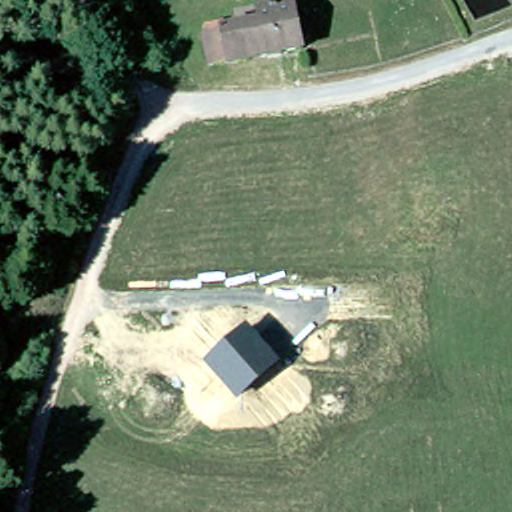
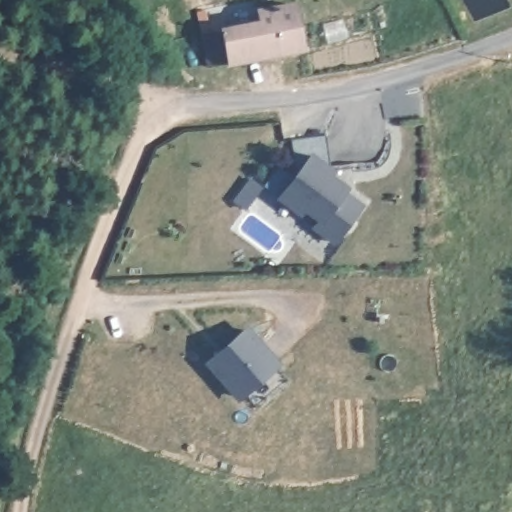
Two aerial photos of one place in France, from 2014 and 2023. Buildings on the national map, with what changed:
unchanged [(205,37),(220,35),(218,25),(295,8),(303,51),(225,66),(210,69),(205,37)]
new [(331,173),(348,187),(346,190),(365,205),(335,244),(312,226),(315,220),(303,212),(300,216),(275,198),(311,151),(335,168),(331,173)]
unchanged [(282,365),(240,403),(204,362),(246,326),(282,365)]

